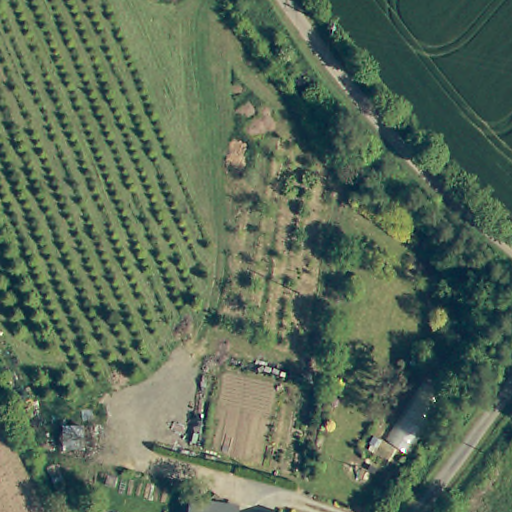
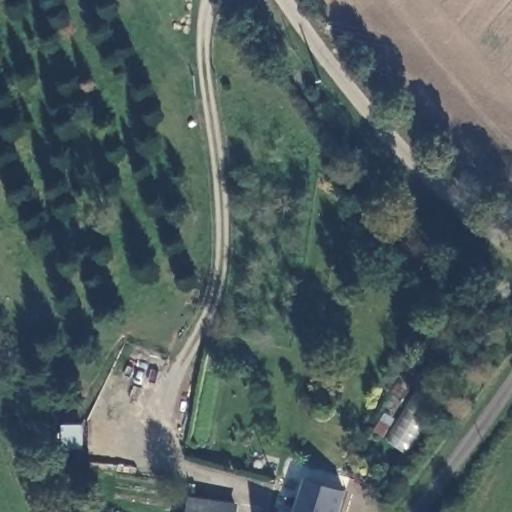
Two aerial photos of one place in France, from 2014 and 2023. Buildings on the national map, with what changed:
demolished [(84,337),(60,342),(56,322),(82,319),(84,337)]
new [(338,512),(292,512),(304,478),(345,491),(338,512)]
unchanged [(187,494),(236,502),(234,512),(184,512),(187,494)]

